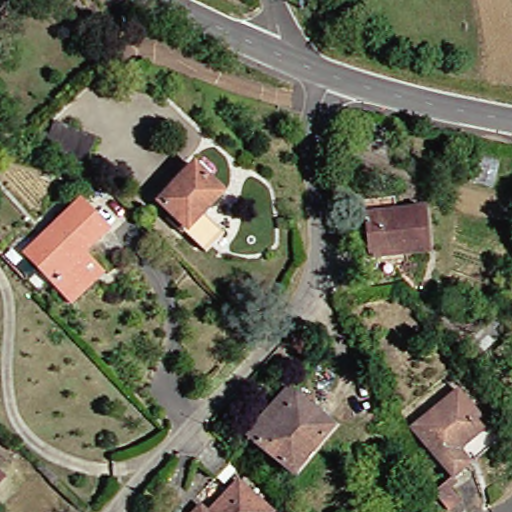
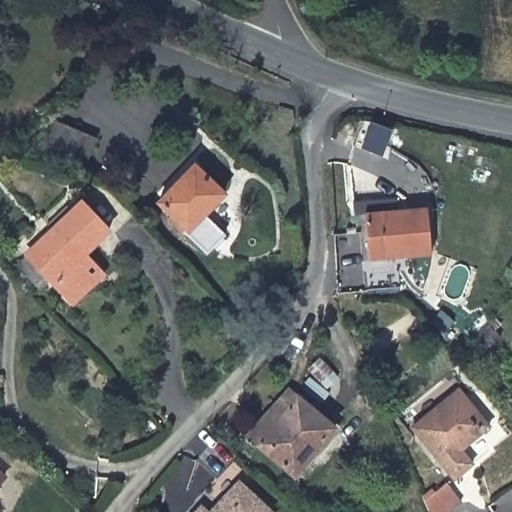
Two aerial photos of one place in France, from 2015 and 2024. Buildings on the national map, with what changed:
unchanged [(84,165),(40,147),(49,121),(95,137),(84,165)]
unchanged [(205,214),(224,234),(207,250),(158,201),(196,163),(227,193),(205,214)]
unchanged [(112,230),(87,254),(106,274),(74,305),(23,252),(81,199),(112,230)]
unchanged [(370,258),(365,212),(427,207),(432,254),(370,258)]
unchanged [(490,430),(462,454),(474,468),(456,483),(413,432),(459,392),(490,430)]
unchanged [(294,473),(257,442),(297,396),(334,428),(294,473)]
unchanged [(223,483),(200,463),(221,441),(243,461),(223,483)]
unchanged [(0,478),(0,475),(2,476),(0,478)]
unchanged [(452,491),(453,492),(462,503),(453,511),(438,492),(446,485),(452,491)]
unchanged [(220,512),(246,486),(274,512),(220,512)]
unchanged [(209,512),(206,512),(207,510),(209,512)]

